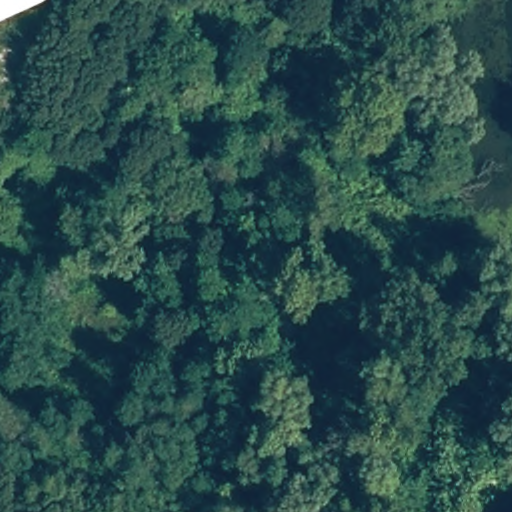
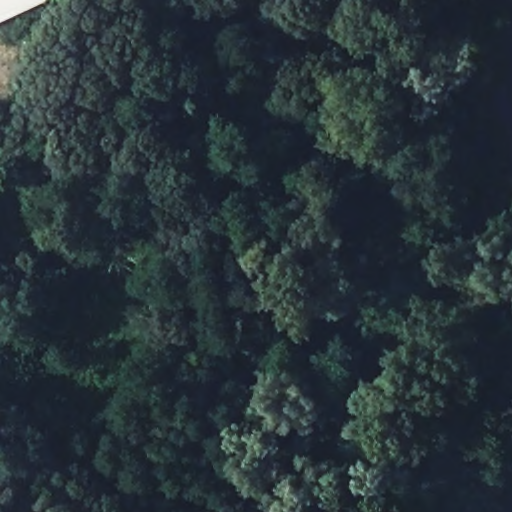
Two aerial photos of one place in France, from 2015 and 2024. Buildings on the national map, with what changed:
unchanged [(0,28),(0,0),(52,0),(54,3),(0,28)]

